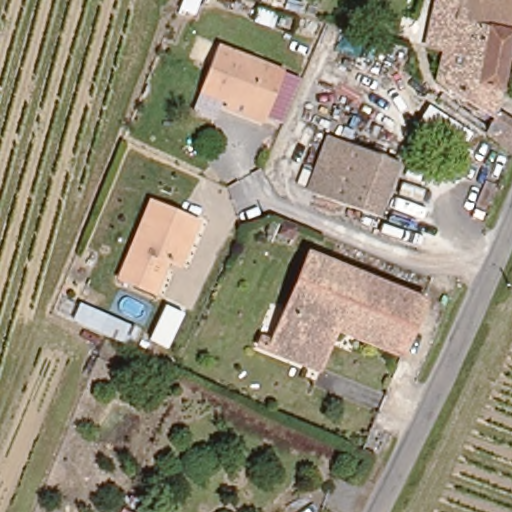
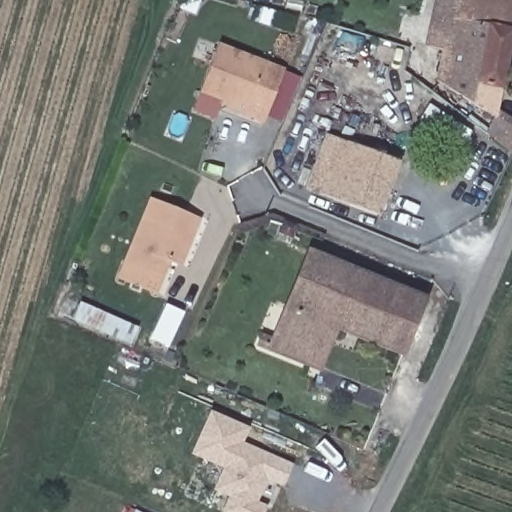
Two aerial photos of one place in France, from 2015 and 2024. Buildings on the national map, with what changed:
unchanged [(433,21),(441,0),(512,0),(512,46),(489,112),(430,83),(449,30),(433,21)]
unchanged [(229,100),(200,88),(217,45),(280,68),(259,122),(238,115),(224,110),(229,100)]
unchanged [(489,112),(512,122),(512,137),(505,154),(480,136),(489,112)]
unchanged [(319,199),(322,189),(306,184),(320,138),(394,161),(377,219),(319,199)]
unchanged [(153,295),(119,282),(149,202),(178,212),(199,219),(194,232),(180,266),(165,261),(159,279),(153,295)]
unchanged [(312,369),(269,353),(304,254),(419,294),(398,354),(338,336),(324,373),(312,369)]
new [(231,495),(215,489),(225,466),(194,453),(210,416),(243,430),(237,445),(287,466),(279,483),(263,476),(251,504),(261,508),(260,512),(224,512),(231,495)]

